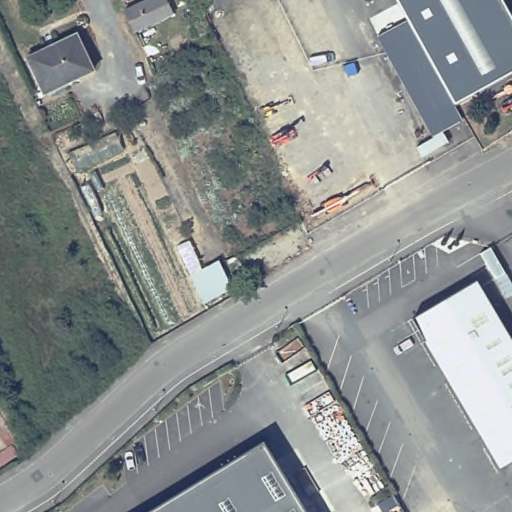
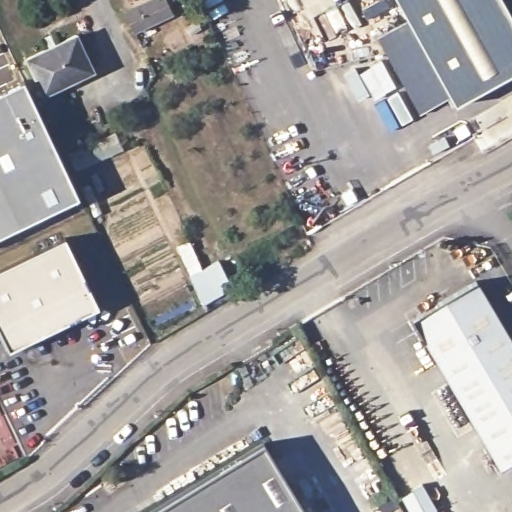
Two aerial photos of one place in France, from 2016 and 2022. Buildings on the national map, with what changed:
unchanged [(152,0),(170,0),(177,12),(139,31),(130,11),(152,0)]
unchanged [(512,12),(512,72),(459,103),(431,54),(410,20),(398,0),(505,0),(512,12)]
unchanged [(431,54),(459,103),(463,110),(469,119),(468,119),(438,137),(380,38),(410,20),(431,54)]
unchanged [(76,35),(93,70),(45,93),(28,58),(76,35)]
new [(0,91),(22,80),(76,197),(0,234),(0,91)]
new [(99,307),(8,352),(0,337),(0,269),(65,237),(99,307)]
unchanged [(476,280),(512,342),(512,463),(501,469),(412,318),(476,280)]
unchanged [(263,442),(305,512),(148,512),(199,480),(263,442)]

